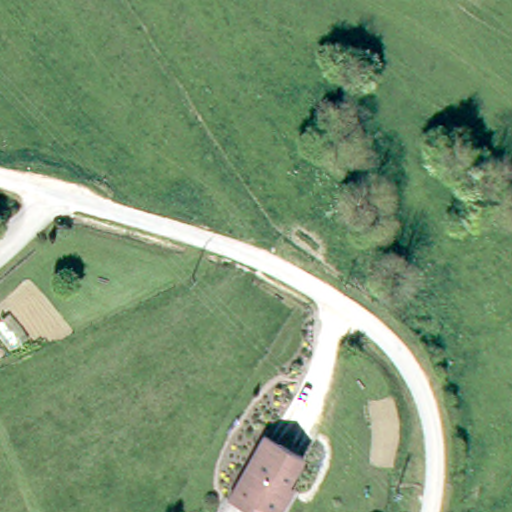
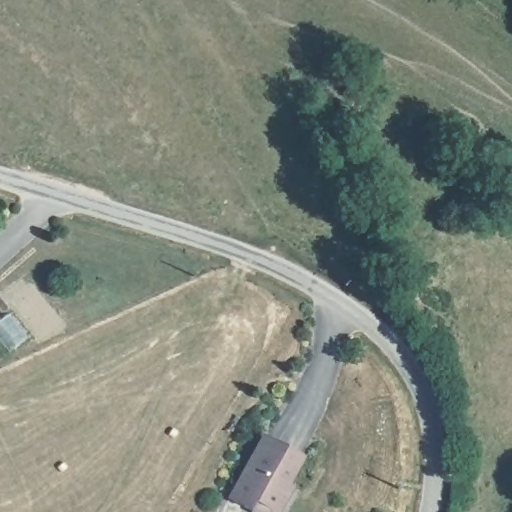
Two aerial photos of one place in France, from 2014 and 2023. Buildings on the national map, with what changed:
unchanged [(244,499),(223,487),(259,424),(298,447),(281,473),(286,476),(279,487),(271,502),(266,511),(244,499)]

